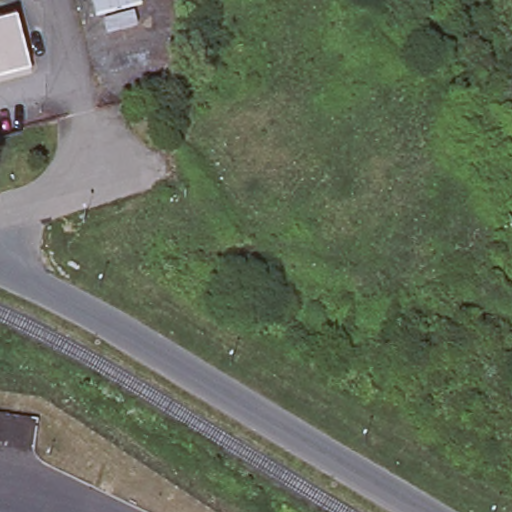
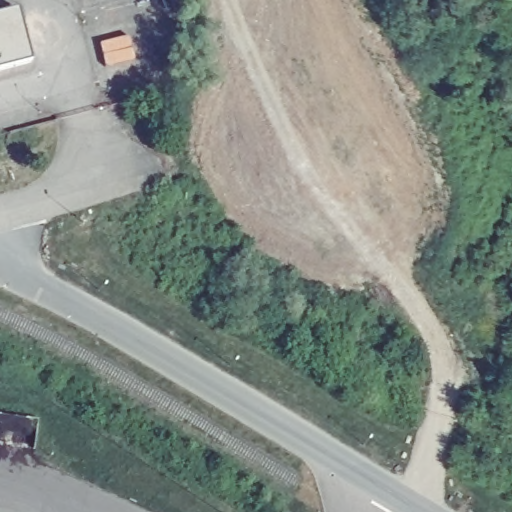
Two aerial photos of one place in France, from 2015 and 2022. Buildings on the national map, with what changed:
unchanged [(34,60),(0,69),(0,11),(20,6),(34,60)]

